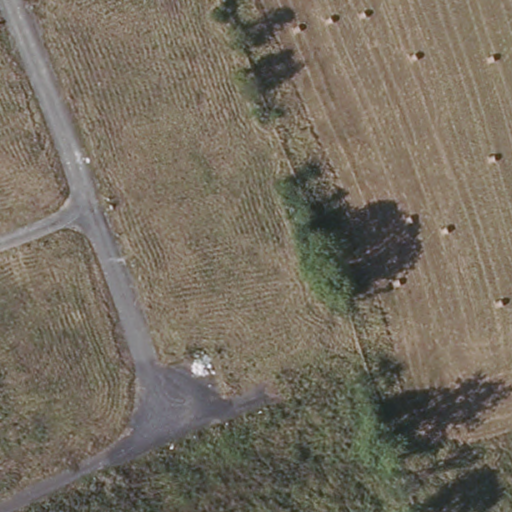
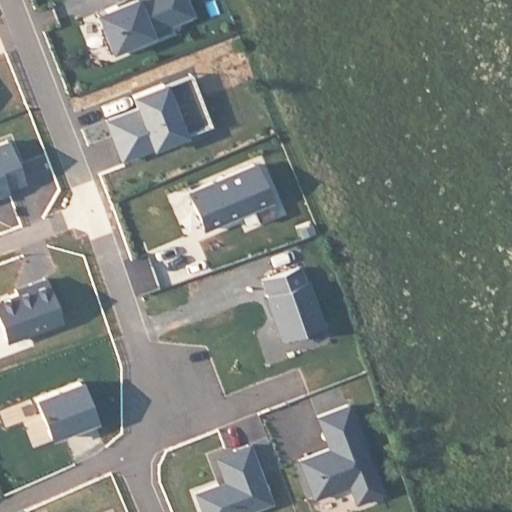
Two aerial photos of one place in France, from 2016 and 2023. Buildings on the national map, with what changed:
new [(92,15),(133,0),(189,0),(194,15),(107,50),(92,15)]
new [(204,71),(221,113),(140,147),(122,105),(204,71)]
new [(12,136),(29,182),(0,194),(0,141),(12,136)]
new [(265,164),(283,205),(216,230),(202,191),(265,164)]
new [(323,321),(281,335),(259,280),(301,260),(323,321)]
new [(16,293),(15,289),(46,277),(61,319),(6,339),(0,323),(0,299),(16,293)]
new [(32,398),(87,375),(103,415),(51,440),(32,398)]
new [(382,493),(357,501),(350,484),(314,496),(301,460),(330,450),(318,417),(348,405),(382,493)]
new [(223,477),(215,456),(265,435),(289,500),(260,512),(204,512),(195,487),(223,477)]

